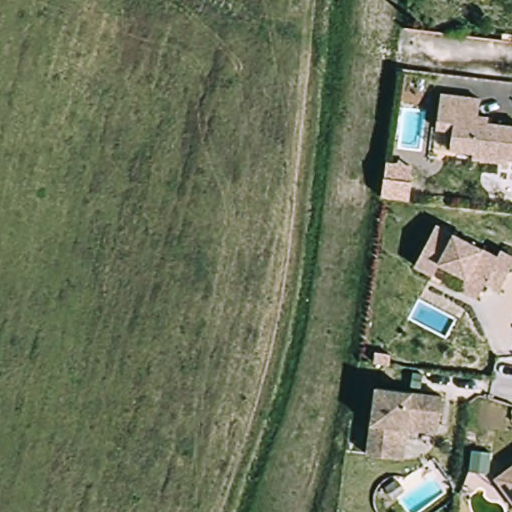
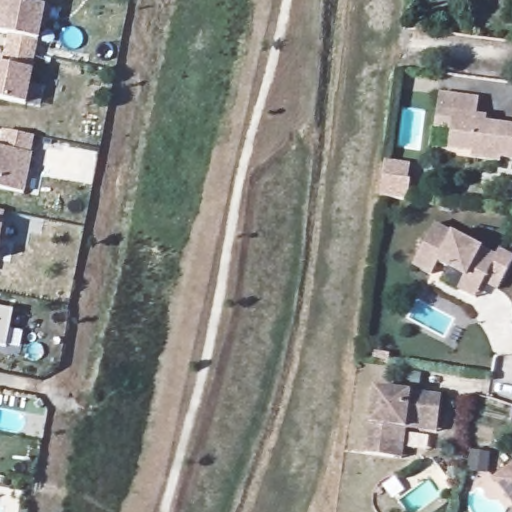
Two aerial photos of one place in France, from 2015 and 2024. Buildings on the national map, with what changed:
new [(8,34),(0,32),(0,5),(1,0),(7,0),(45,7),(40,40),(33,72),(26,103),(0,99),(0,65),(2,65),(8,34)]
unchanged [(508,159),(507,163),(478,159),(478,153),(455,150),(458,130),(442,128),(446,94),(485,99),(483,116),(493,117),(492,123),(512,126),(512,159),(508,159)]
new [(35,138),(33,153),(25,193),(0,188),(0,143),(2,131),(35,138)]
unchanged [(380,163),(405,167),(402,181),(405,182),(402,202),(375,198),(377,178),(380,163)]
new [(2,226),(0,237),(0,211),(3,211),(2,226)]
unchanged [(471,280),(443,265),(437,276),(419,266),(442,226),(502,259),(505,253),(512,257),(512,277),(504,293),(490,286),(482,301),(465,292),(471,280)]
new [(6,347),(0,346),(0,309),(12,311),(6,347)]
unchanged [(409,433),(405,457),(398,456),(370,452),(379,385),(445,395),(441,431),(440,438),(409,433)]
unchanged [(500,475),(512,467),(512,492),(500,475)]

